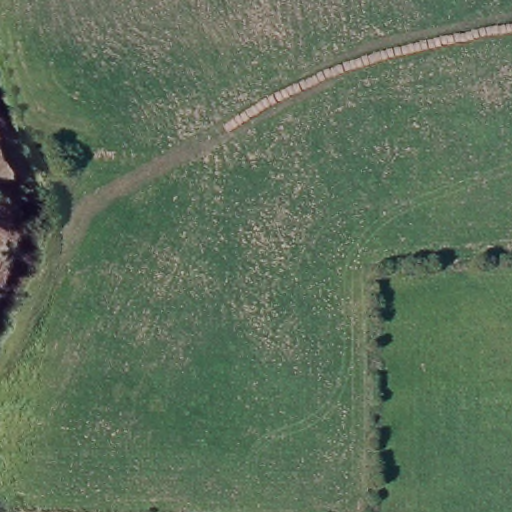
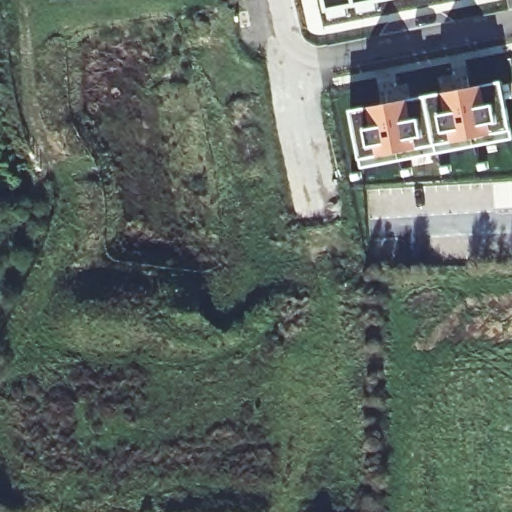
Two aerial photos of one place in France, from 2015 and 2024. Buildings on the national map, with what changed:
new [(325,0),(381,0),(327,11),(325,0)]
new [(383,104),(387,125),(393,123),(390,103),(465,87),(468,108),(475,106),(471,86),(503,80),(512,130),(512,135),(362,165),(352,110),(383,104)]

